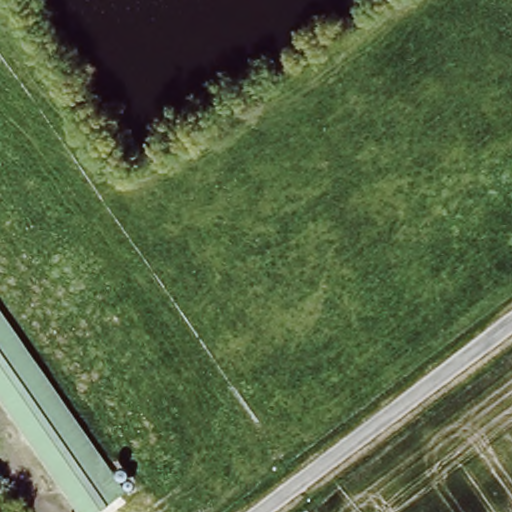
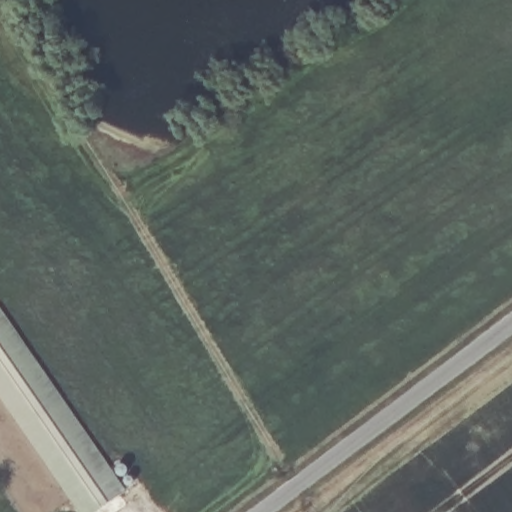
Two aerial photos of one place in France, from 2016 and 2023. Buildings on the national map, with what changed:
unchanged [(92,512),(82,512),(0,392),(0,307),(125,490),(92,512)]

